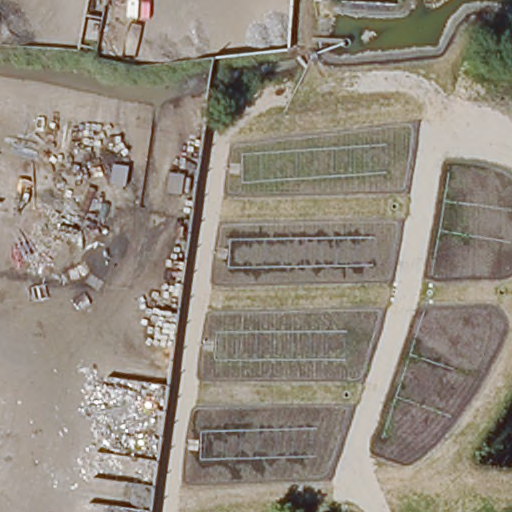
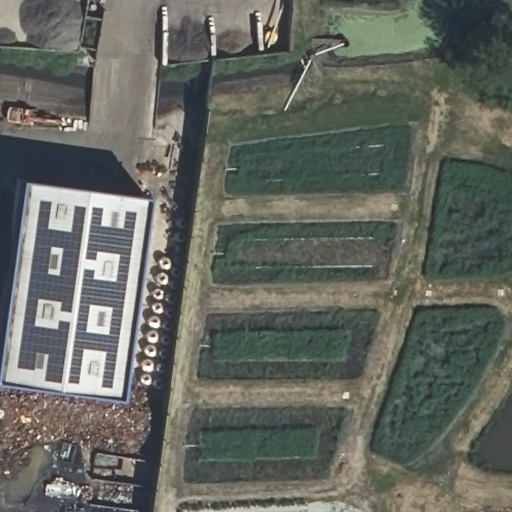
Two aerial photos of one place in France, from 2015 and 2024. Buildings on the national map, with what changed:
new [(0,379),(0,304),(18,177),(146,193),(117,393),(0,379)]

